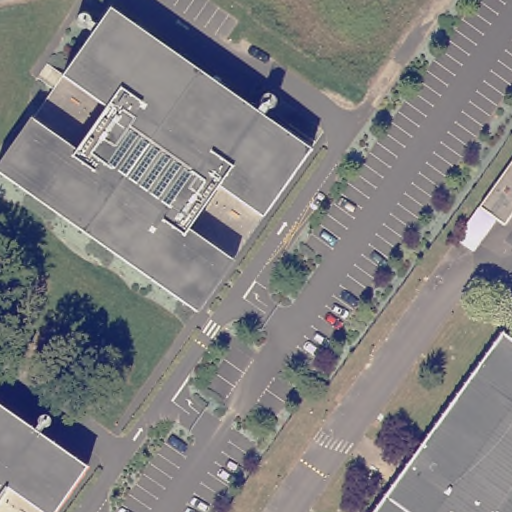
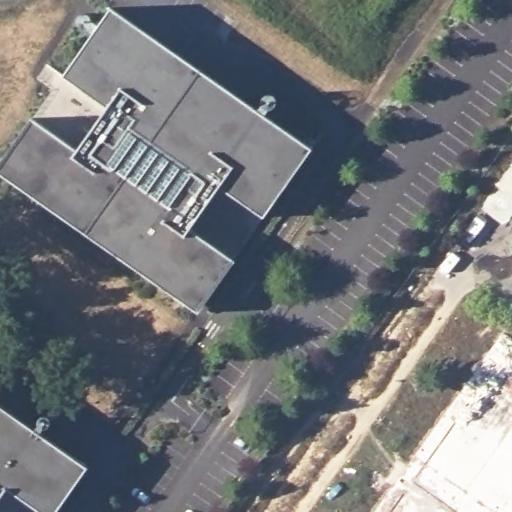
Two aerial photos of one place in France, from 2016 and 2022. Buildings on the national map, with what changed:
unchanged [(197,311),(0,173),(0,163),(111,6),(312,148),(197,311)]
demolished [(484,206),(512,167),(512,221),(510,225),(484,206)]
unchanged [(461,239),(482,209),(499,221),(477,251),(461,239)]
demolished [(403,473),(501,337),(512,345),(512,512),(376,512),(403,473)]
unchanged [(87,466),(55,512),(44,512),(8,487),(0,498),(0,405),(49,439),(87,466)]

